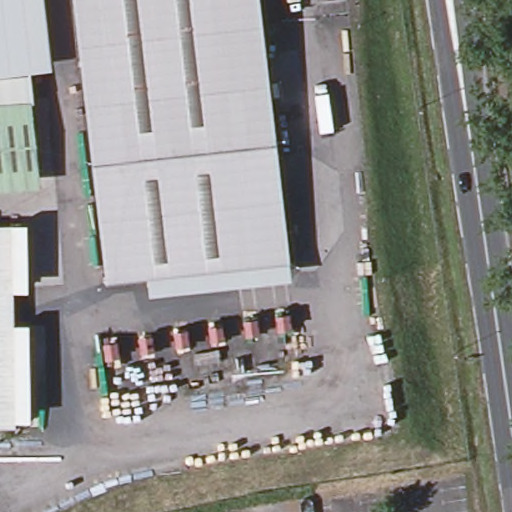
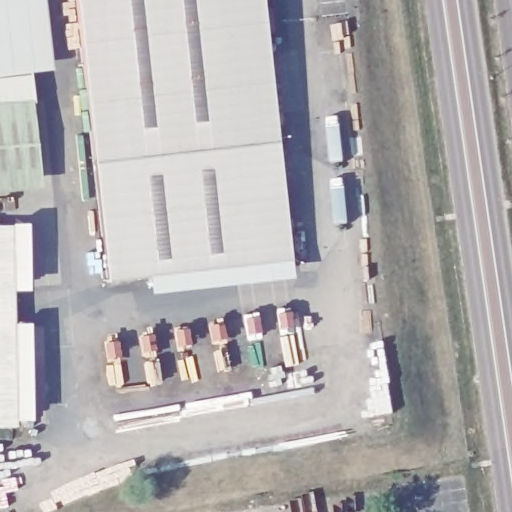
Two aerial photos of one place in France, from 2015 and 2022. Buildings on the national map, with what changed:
unchanged [(45,0),(53,72),(30,75),(34,99),(0,101),(0,0),(45,0)]
unchanged [(76,0),(261,0),(291,259),(151,276),(112,281),(108,281),(93,144),(76,0)]
unchanged [(34,99),(40,187),(0,191),(0,101),(34,99)]
unchanged [(11,225),(13,296),(13,328),(15,426),(0,426),(0,225),(11,225)]
unchanged [(29,225),(30,295),(13,296),(11,225),(29,225)]
unchanged [(291,259),(294,282),(152,297),(151,276),(291,259)]
unchanged [(31,327),(33,424),(15,426),(13,328),(31,327)]

